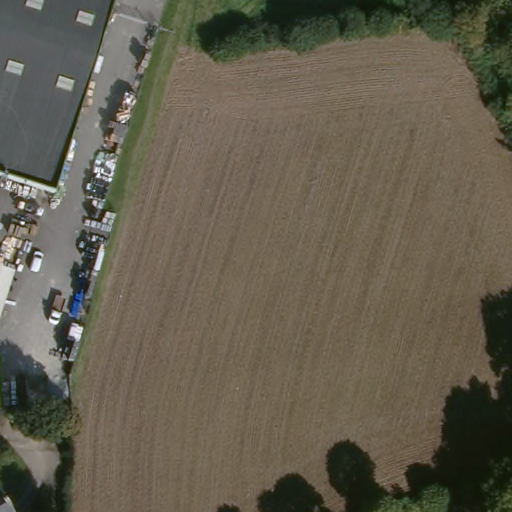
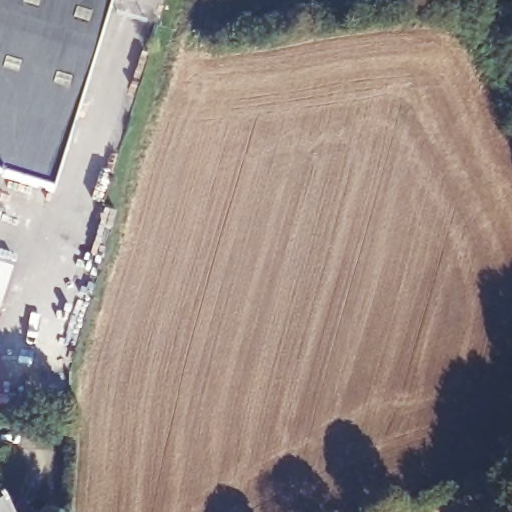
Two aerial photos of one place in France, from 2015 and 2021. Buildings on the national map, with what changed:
unchanged [(117,0),(106,36),(94,75),(57,199),(0,181),(0,0),(117,0)]
unchanged [(9,512),(0,512),(0,499),(9,512)]

